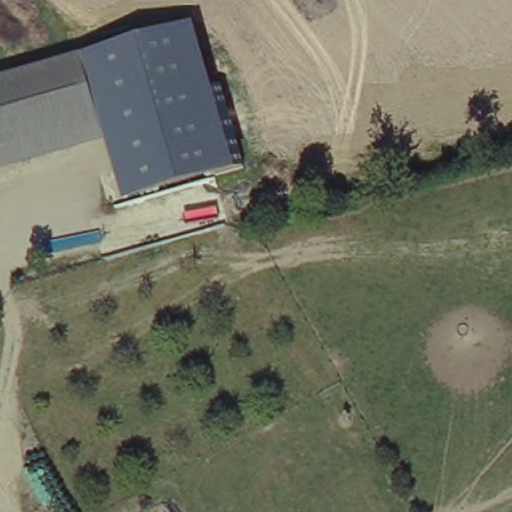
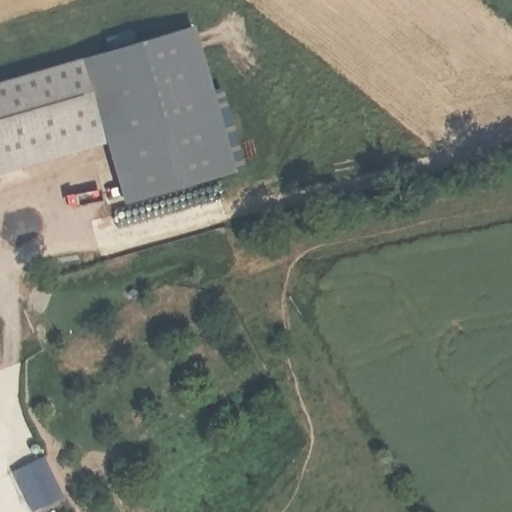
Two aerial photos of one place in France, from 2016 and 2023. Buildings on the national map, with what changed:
unchanged [(124,200),(105,142),(76,57),(190,24),(233,166),(124,200)]
unchanged [(0,173),(0,80),(76,57),(105,142),(0,173)]
new [(46,453),(64,497),(29,512),(11,470),(46,453)]

